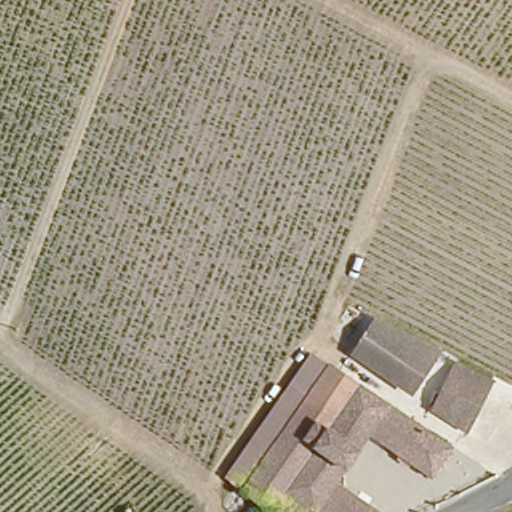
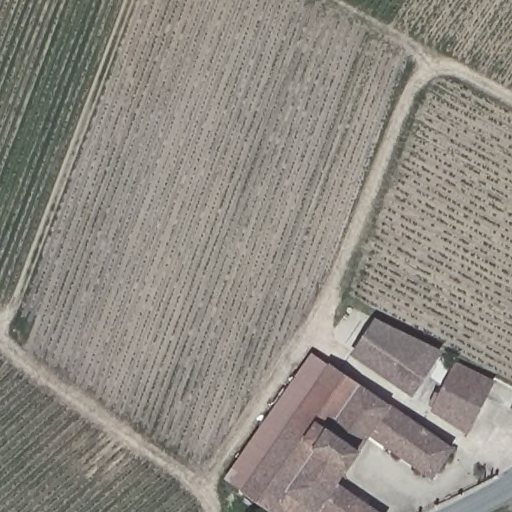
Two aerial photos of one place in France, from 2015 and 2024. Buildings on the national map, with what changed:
unchanged [(407,379),(351,341),(353,337),(374,307),(436,338),(415,368),(407,379)]
unchanged [(219,478),(303,349),(349,380),(341,393),(308,371),(235,489),(219,478)]
unchanged [(465,429),(426,406),(437,389),(445,374),(455,358),(494,380),(486,393),(465,429)]
unchanged [(259,506),(235,489),(308,371),(341,393),(349,380),(441,440),(424,471),(358,431),(326,481),(377,512),(302,512),(300,509),(297,512),(276,512),(261,503),(259,506)]

